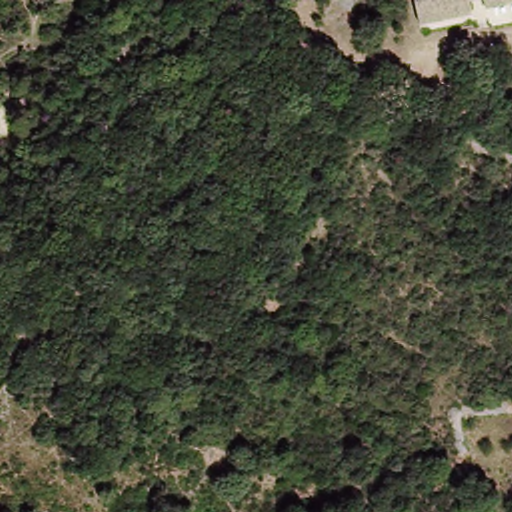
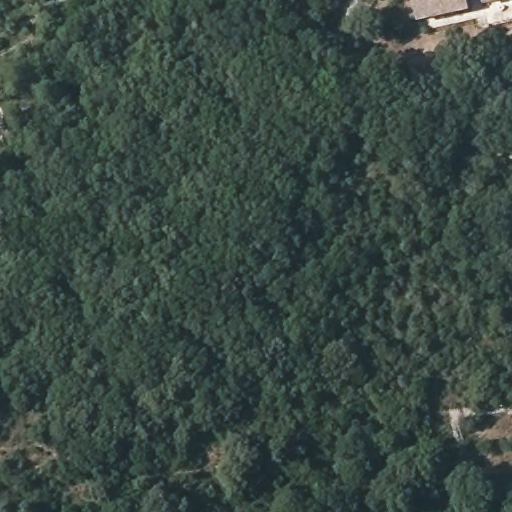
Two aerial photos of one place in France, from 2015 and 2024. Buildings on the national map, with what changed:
unchanged [(482,10),(480,0),(465,1),(467,14),(415,21),(411,0),(512,0),(512,4),(482,10)]

